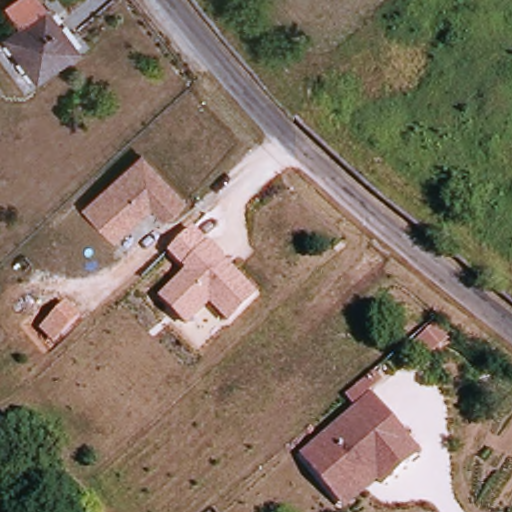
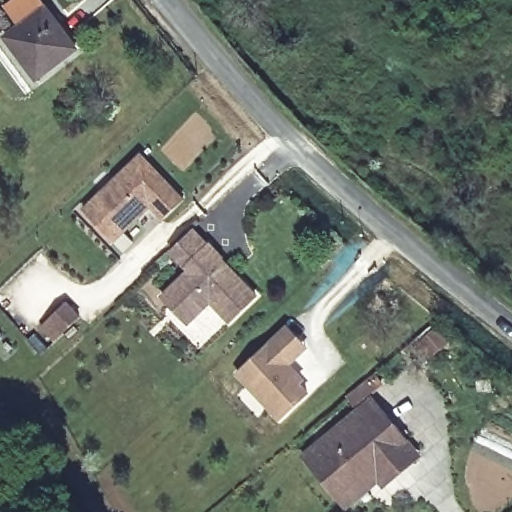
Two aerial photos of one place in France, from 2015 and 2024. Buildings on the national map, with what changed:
unchanged [(15,38),(34,24),(21,5),(28,0),(53,0),(57,6),(58,7),(56,8),(87,49),(46,79),(15,38)]
unchanged [(82,208),(142,153),(187,199),(164,221),(151,207),(116,242),(82,208)]
unchanged [(232,321),(211,300),(187,322),(162,297),(190,272),(186,267),(209,246),(258,296),(232,321)]
unchanged [(83,320),(51,346),(36,327),(67,302),(83,320)]
new [(296,381),(305,390),(277,417),(235,372),(283,325),(296,337),(302,345),(292,354),(285,362),(292,370),(299,377),(296,381)]
unchanged [(452,347),(427,362),(413,342),(437,327),(452,347)]
unchanged [(302,455),(374,395),(425,457),(386,490),(380,482),(348,511),(302,455)]

